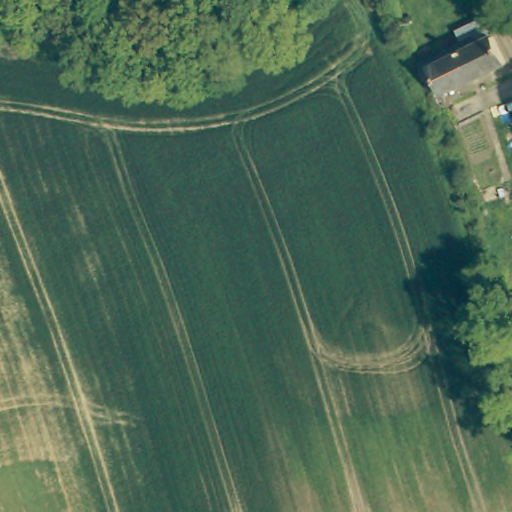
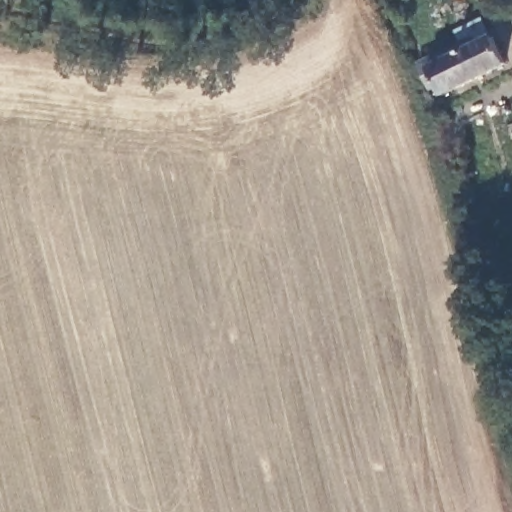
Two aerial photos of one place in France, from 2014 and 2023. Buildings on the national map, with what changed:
unchanged [(433,95),(425,78),(421,68),(468,41),(472,48),(490,36),(506,61),(448,99),(438,105),(433,95)]

